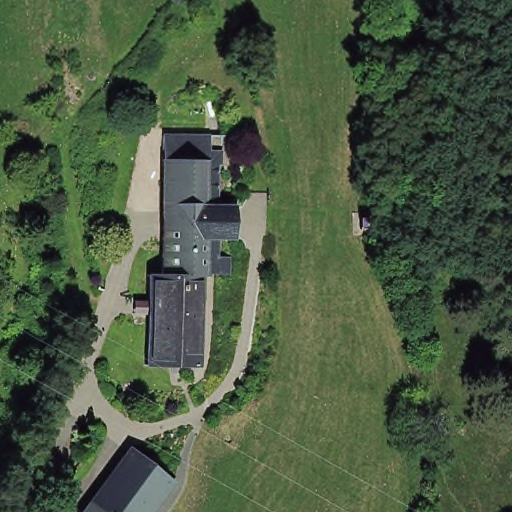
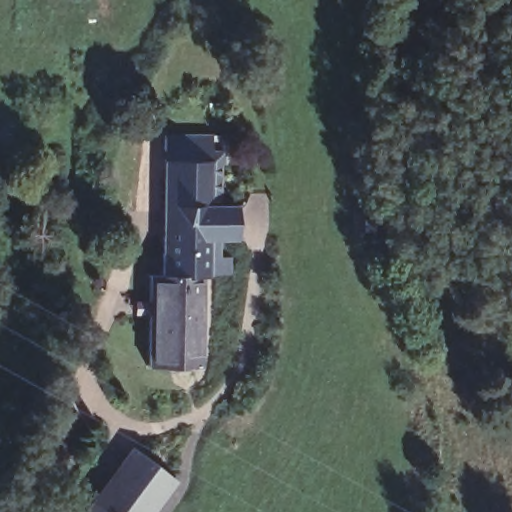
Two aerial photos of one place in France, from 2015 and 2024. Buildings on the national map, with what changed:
unchanged [(218,148),(218,127),(230,128),(230,148),(218,148)]
unchanged [(161,153),(162,128),(207,128),(207,148),(207,153),(161,153)]
unchanged [(218,201),(227,201),(227,230),(218,230),(218,249),(227,249),(227,269),(207,269),(207,223),(207,176),(207,153),(207,148),(218,148),(218,201)]
unchanged [(207,153),(207,176),(161,175),(161,153),(207,153)]
unchanged [(160,223),(161,175),(207,176),(207,223),(160,223)]
unchanged [(207,269),(198,269),(160,269),(160,223),(207,223),(207,269)]
unchanged [(197,362),(144,361),(145,268),(160,269),(198,269),(197,362)]
unchanged [(91,512),(137,448),(180,475),(154,512),(91,512)]

